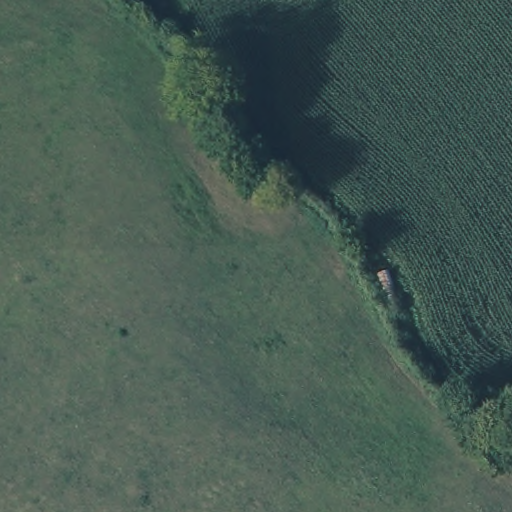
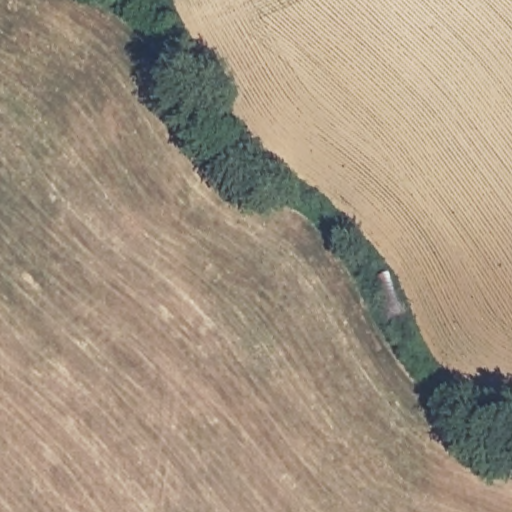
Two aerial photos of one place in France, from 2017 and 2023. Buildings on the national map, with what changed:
unchanged [(388,272),(403,312),(392,317),(380,286),(376,277),(388,272)]

